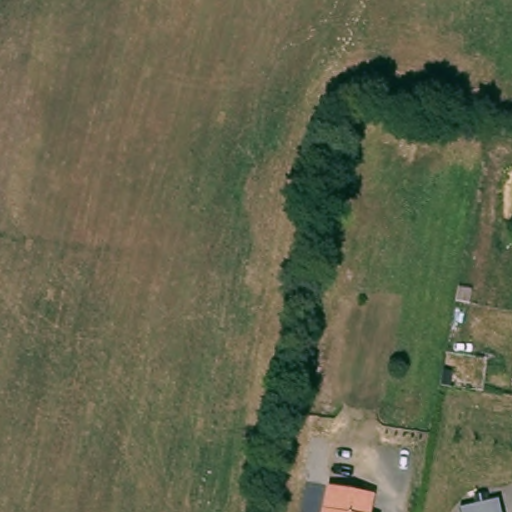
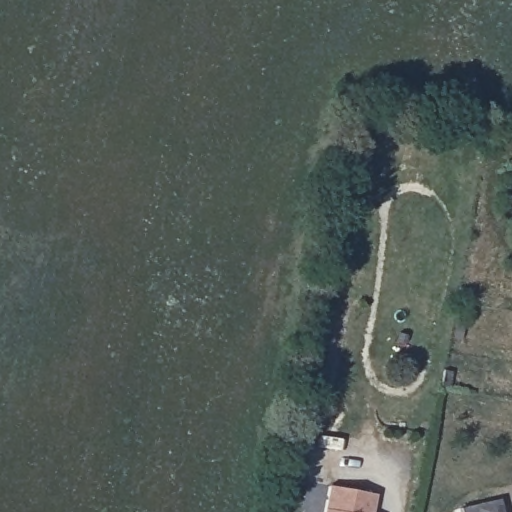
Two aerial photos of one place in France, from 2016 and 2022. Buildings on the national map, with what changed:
unchanged [(338,484),(378,491),(385,492),(382,512),(334,512),(338,484)]

